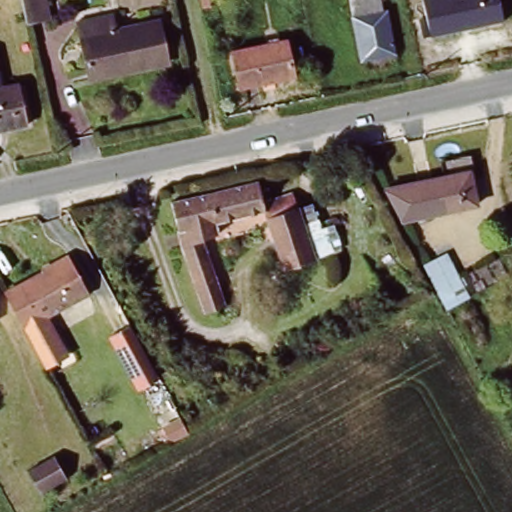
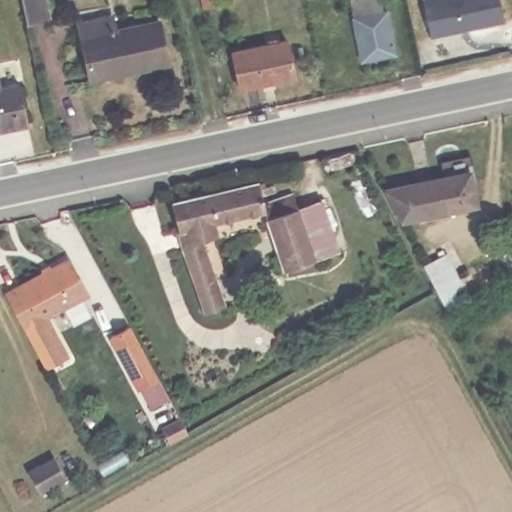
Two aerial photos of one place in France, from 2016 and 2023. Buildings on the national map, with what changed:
unchanged [(52,19),(27,25),(21,0),(48,0),(52,19)]
unchanged [(214,5),(205,6),(204,0),(213,0),(214,5)]
unchanged [(345,0),(347,0),(375,0),(380,25),(385,24),(394,67),(360,74),(345,0)]
unchanged [(504,21),(430,38),(421,0),(499,0),(504,21)]
unchanged [(75,29),(107,22),(110,36),(156,26),(165,67),(87,84),(75,29)]
unchanged [(229,54),(282,43),(289,79),(236,89),(229,54)]
unchanged [(29,123),(0,129),(0,85),(20,81),(29,123)]
unchanged [(475,175),(482,208),(401,223),(387,193),(475,175)]
unchanged [(188,293),(170,246),(170,233),(167,199),(176,198),(195,194),(245,186),(252,207),(280,198),(285,211),(304,264),(272,275),(251,215),(200,225),(204,239),(191,241),(207,288),(215,309),(197,316),(188,293)]
unchanged [(312,200),(320,224),(345,218),(357,247),(304,264),(285,211),(312,200)]
unchanged [(425,265),(447,252),(472,298),(451,309),(442,294),(425,265)]
unchanged [(70,259),(89,292),(41,319),(22,286),(70,259)]
unchanged [(41,319),(51,313),(71,353),(45,368),(6,295),(22,286),(41,319)]
unchanged [(112,340),(131,331),(150,367),(155,377),(157,382),(139,394),(135,388),(130,377),(112,340)]
unchanged [(64,480),(39,494),(30,475),(54,462),(64,480)]

